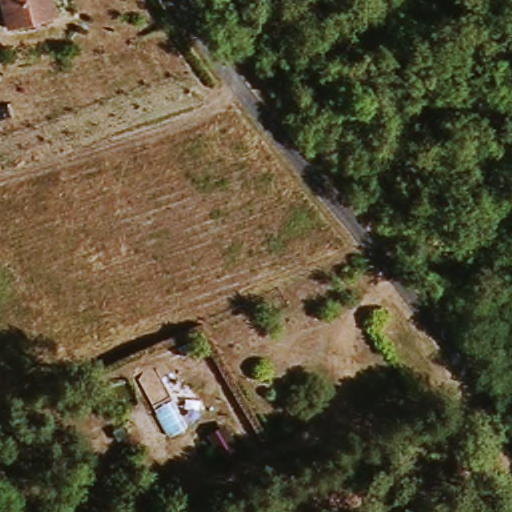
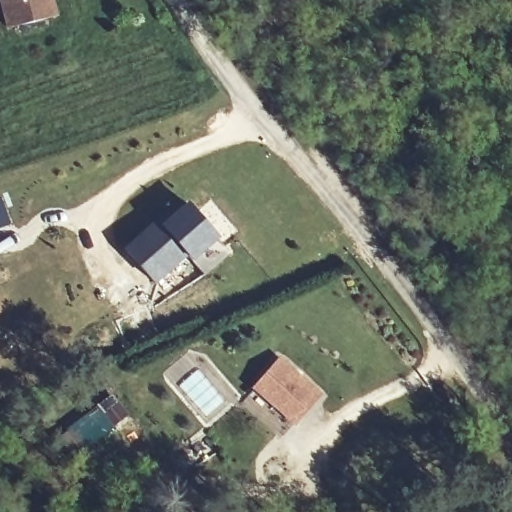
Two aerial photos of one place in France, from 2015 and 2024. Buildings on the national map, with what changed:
unchanged [(0,2),(0,0),(51,0),(56,17),(11,30),(0,2)]
new [(124,249),(160,219),(163,223),(186,202),(220,239),(193,262),(190,257),(155,285),(124,249)]
new [(280,357),(322,393),(295,426),(251,388),(280,357)]
demolished [(232,425),(251,457),(233,467),(213,435),(232,425)]

